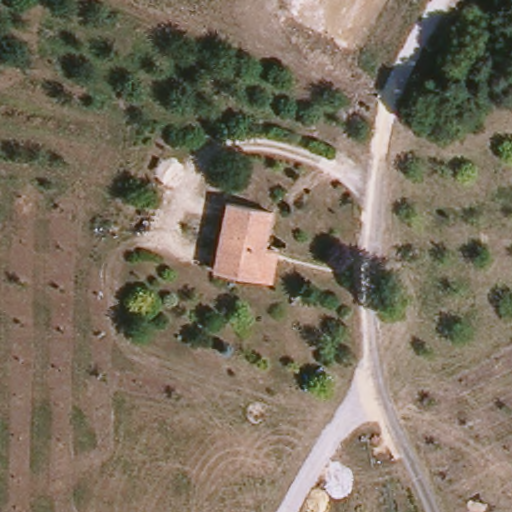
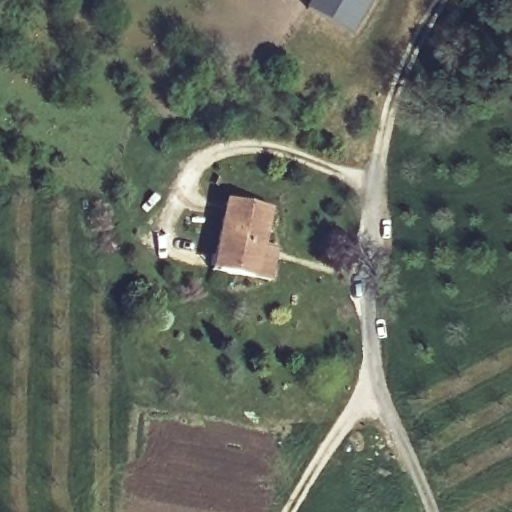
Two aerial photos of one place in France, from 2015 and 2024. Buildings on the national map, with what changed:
new [(307,6),(311,0),(373,0),(355,33),(307,6)]
unchanged [(230,206),(270,215),(263,251),(258,250),(252,280),(216,272),(230,206)]

